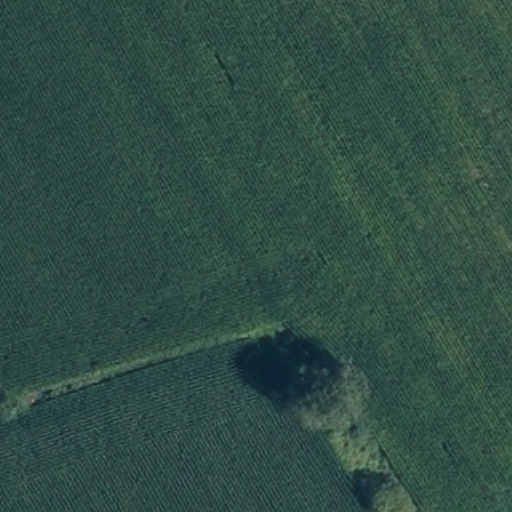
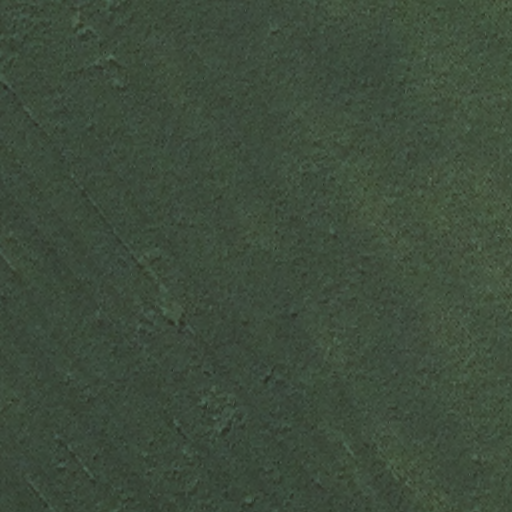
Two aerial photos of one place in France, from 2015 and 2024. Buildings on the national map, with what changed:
[]

